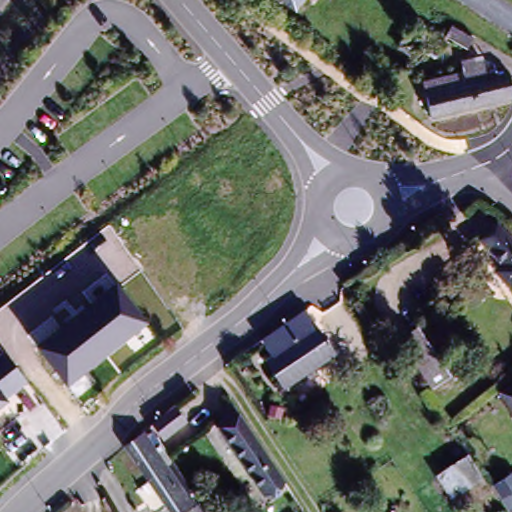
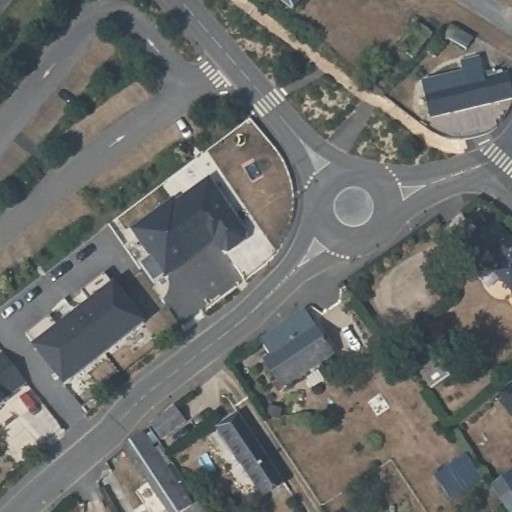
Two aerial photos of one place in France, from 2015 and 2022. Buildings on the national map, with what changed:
unchanged [(280,0),(294,0),(289,7),(280,0)]
unchanged [(420,21),(435,31),(415,57),(400,47),(420,21)]
unchanged [(452,28),(475,40),(468,49),(446,37),(452,28)]
unchanged [(431,119),(423,83),(465,72),(462,63),(481,58),(485,73),(496,71),(498,76),(509,74),(512,89),(512,100),(431,119)]
new [(246,232),(244,242),(228,253),(221,252),(215,241),(166,277),(164,272),(152,281),(140,263),(150,256),(130,228),(172,198),(175,203),(208,178),(246,232)]
unchanged [(506,282),(495,270),(502,263),(480,239),(497,223),(512,239),(512,288),(506,282)]
unchanged [(26,335),(51,317),(59,326),(88,302),(81,293),(107,273),(146,324),(65,387),(26,335)]
unchanged [(275,390),(280,387),(262,364),(270,358),(260,344),(305,314),(333,357),(283,392),(279,395),(275,390)]
unchanged [(455,372),(439,384),(430,370),(425,373),(401,339),(421,324),(455,372)]
unchanged [(6,400),(8,402),(0,409),(0,356),(3,353),(27,384),(6,400)]
unchanged [(512,387),(512,401),(505,392),(512,387)]
unchanged [(161,414),(178,400),(190,414),(190,415),(167,434),(155,419),(161,414)]
unchanged [(267,493),(223,426),(245,412),(288,480),(267,493)]
unchanged [(155,437),(160,434),(175,458),(170,461),(196,498),(177,511),(130,441),(147,426),(155,437)]
unchanged [(449,499),(433,475),(465,453),(482,477),(449,499)]
unchanged [(511,470),(512,472),(512,512),(511,512),(491,485),(511,470)]
unchanged [(210,509),(206,512),(184,512),(202,499),(210,509)]

